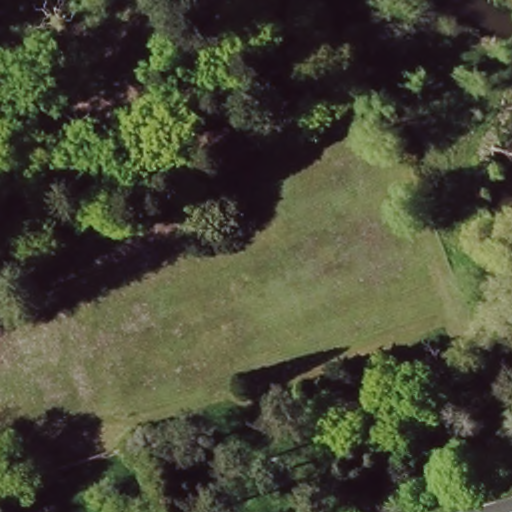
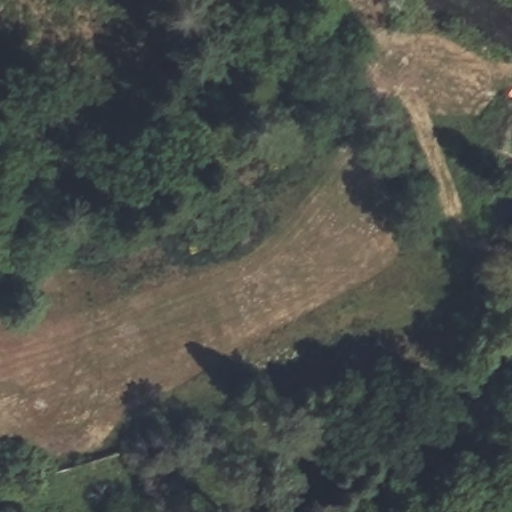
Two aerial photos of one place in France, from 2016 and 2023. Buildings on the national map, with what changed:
unchanged [(205,169),(217,183),(210,189),(195,202),(184,189),(202,171),(205,169)]

